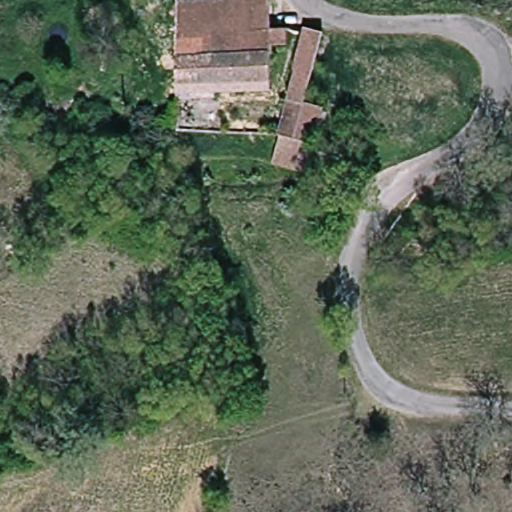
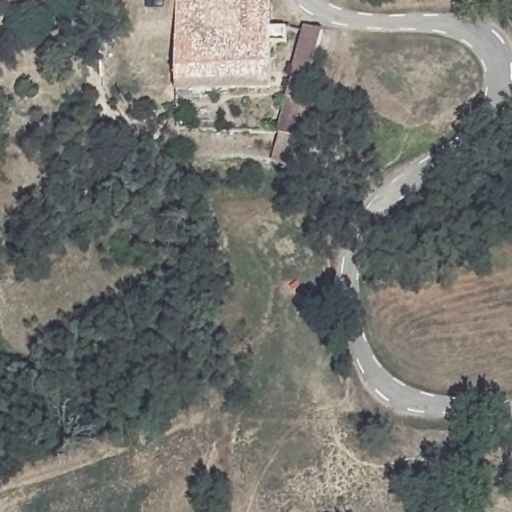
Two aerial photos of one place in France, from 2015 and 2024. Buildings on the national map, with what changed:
unchanged [(181,4),(274,0),(275,26),(181,30),(181,4)]
unchanged [(306,24),(323,26),(312,93),(294,90),(306,24)]
unchanged [(288,26),(288,40),(275,40),(276,87),(183,90),(181,30),(275,26),(288,26)]
unchanged [(294,90),(312,93),(328,96),(319,135),(286,130),(294,90)]

